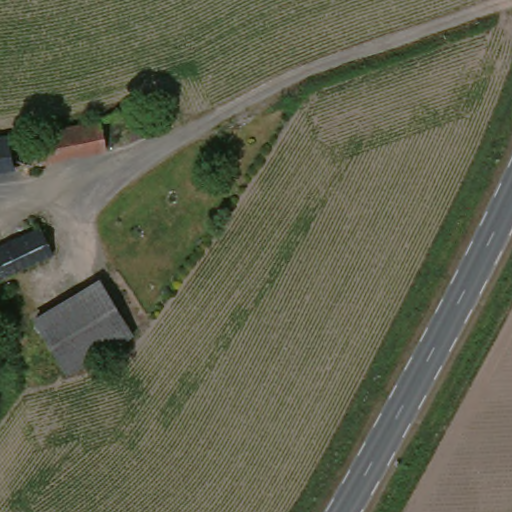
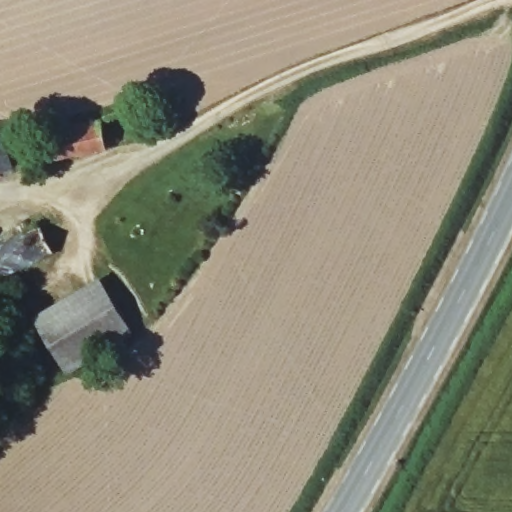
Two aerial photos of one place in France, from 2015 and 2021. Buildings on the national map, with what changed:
unchanged [(98,114),(106,147),(36,164),(0,171),(0,133),(13,130),(14,135),(98,114)]
unchanged [(42,222),(55,249),(34,259),(0,277),(0,243),(42,222)]
unchanged [(125,327),(61,364),(38,318),(99,283),(125,327)]

